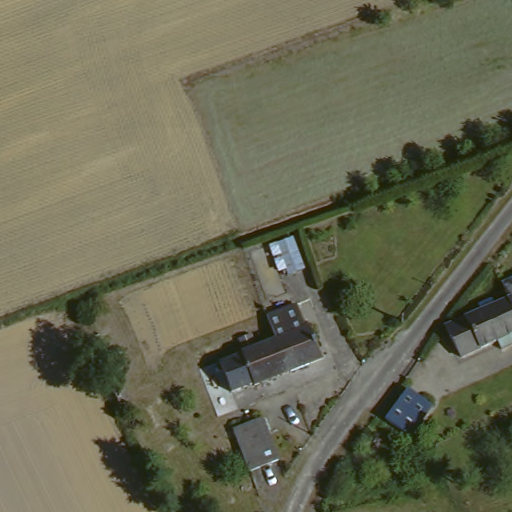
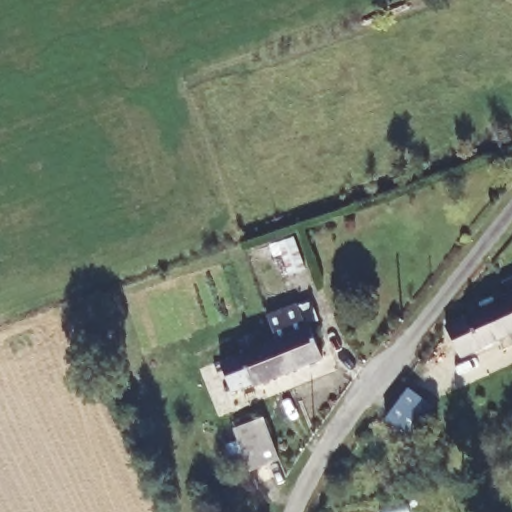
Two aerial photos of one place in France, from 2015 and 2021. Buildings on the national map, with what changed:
unchanged [(287,275),(276,245),(295,237),(306,268),(287,275)]
unchanged [(506,279),(512,276),(512,293),(506,279)]
unchanged [(507,350),(502,339),(467,356),(452,325),(512,293),(512,348),(507,350)]
unchanged [(302,299),(310,324),(315,322),(327,356),(293,369),(282,334),(272,310),(302,299)]
unchanged [(232,392),(221,362),(246,352),(245,348),(282,334),(293,369),(232,392)]
unchanged [(432,406),(412,435),(390,419),(408,391),(432,406)]
unchanged [(232,420),(261,409),(281,467),(252,477),(232,420)]

